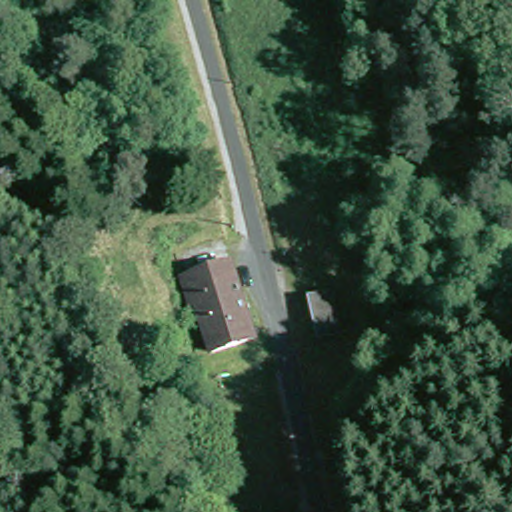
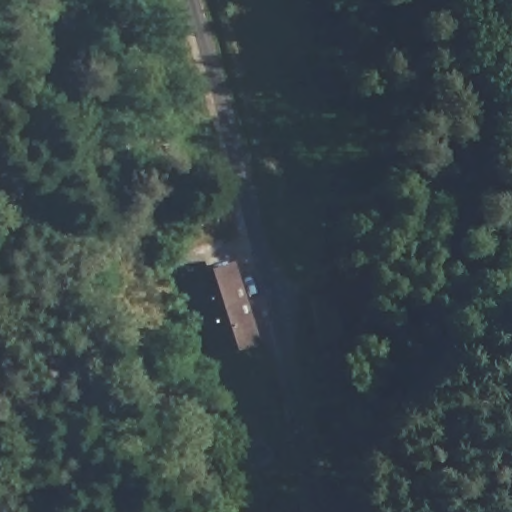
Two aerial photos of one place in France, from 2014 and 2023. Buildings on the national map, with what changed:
unchanged [(197,306),(192,308),(183,278),(232,265),(255,342),(212,353),(197,306)]
unchanged [(329,295),(337,333),(317,337),(308,298),(329,295)]

